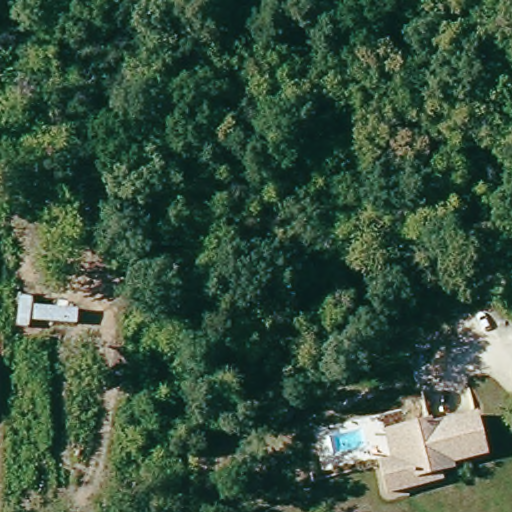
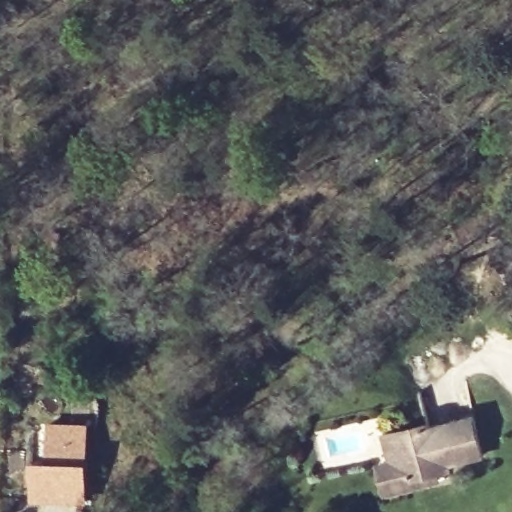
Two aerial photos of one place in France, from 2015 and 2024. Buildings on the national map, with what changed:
unchanged [(448,465),(450,470),(427,477),(430,485),(398,494),(390,466),(418,458),(413,431),(443,425),(483,416),(492,454),(448,465)]
new [(87,464),(86,500),(34,500),(35,462),(49,462),(51,424),(89,425),(87,464)]

